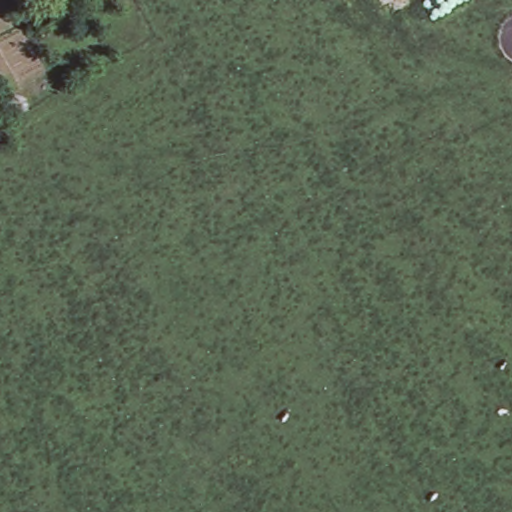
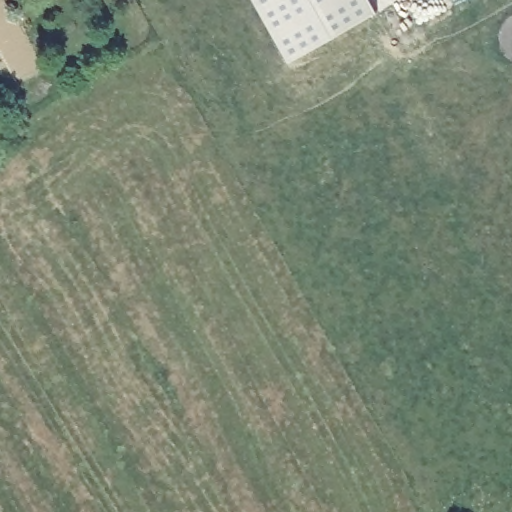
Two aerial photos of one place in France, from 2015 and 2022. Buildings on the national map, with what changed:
new [(377,7),(291,58),(258,0),(373,0),(377,7)]

